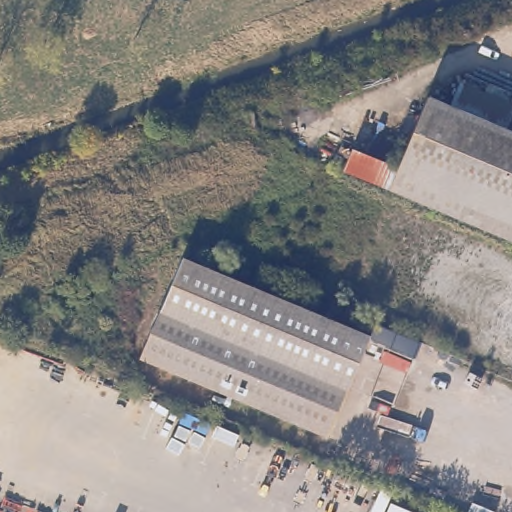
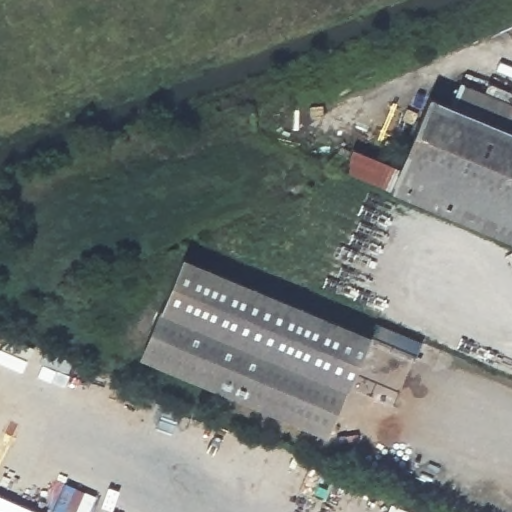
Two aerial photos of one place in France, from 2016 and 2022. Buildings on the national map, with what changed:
unchanged [(397,166),(428,98),(448,107),(458,87),(512,109),(502,129),(512,133),(512,240),(344,169),(352,148),(397,166)]
unchanged [(143,362),(185,262),(368,339),(327,438),(143,362)]
unchanged [(421,344),(415,358),(368,339),(374,324),(421,344)]

